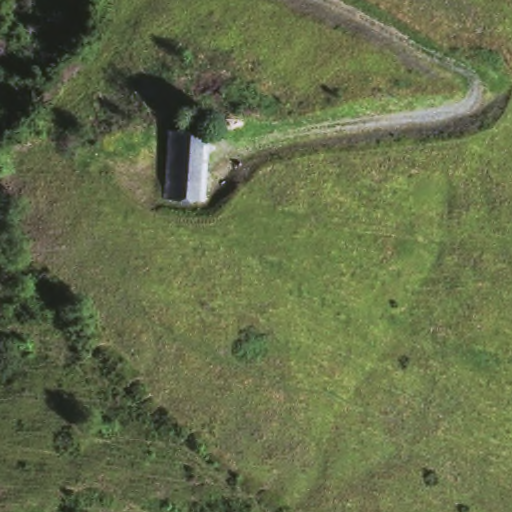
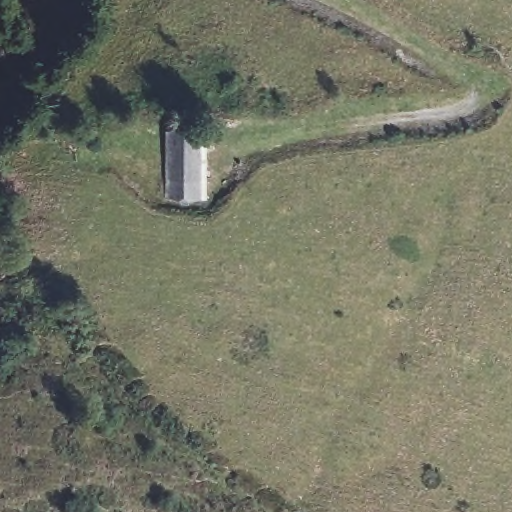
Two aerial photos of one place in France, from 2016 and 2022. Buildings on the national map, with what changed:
unchanged [(207,205),(167,204),(170,133),(211,133),(207,205)]

